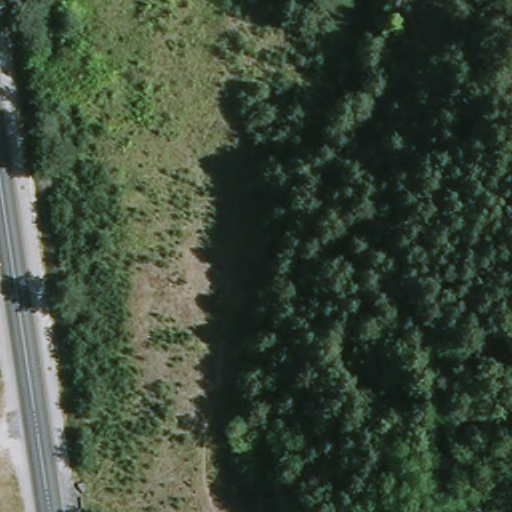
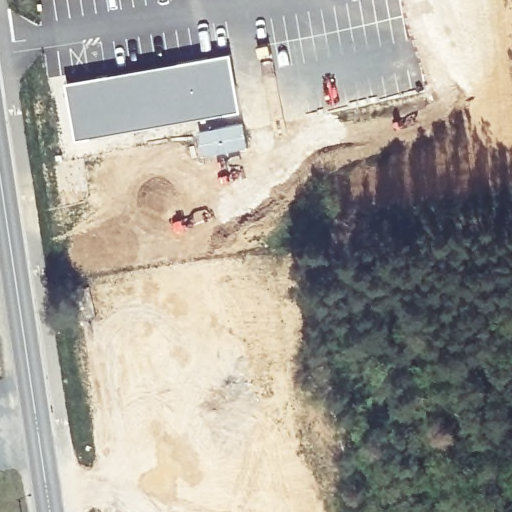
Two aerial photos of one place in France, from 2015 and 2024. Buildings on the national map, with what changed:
new [(240,110),(77,137),(70,90),(68,81),(98,76),(231,54),(240,110)]

